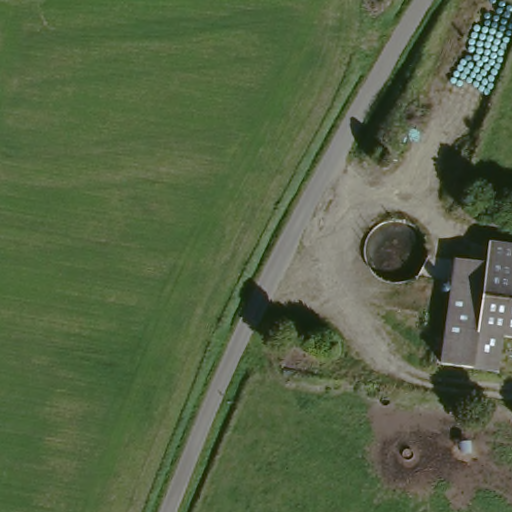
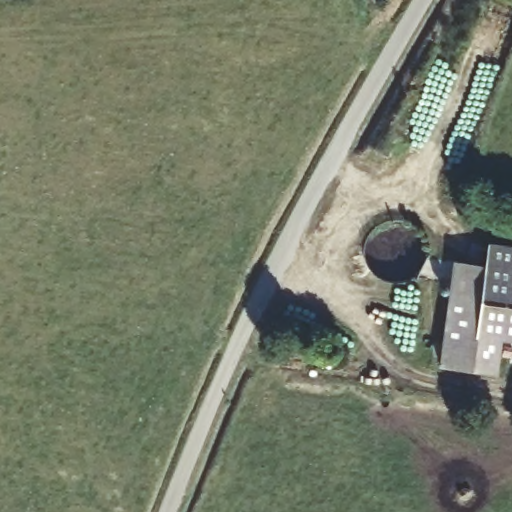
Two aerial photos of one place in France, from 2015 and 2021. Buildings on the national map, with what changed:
unchanged [(502,335),(476,329),(491,262),(496,242),(512,245),(512,337),(502,335)]
unchanged [(476,329),(502,335),(494,371),(437,357),(458,257),(491,262),(476,329)]

